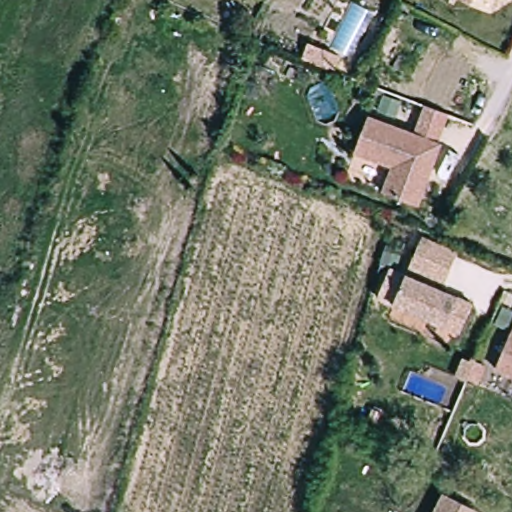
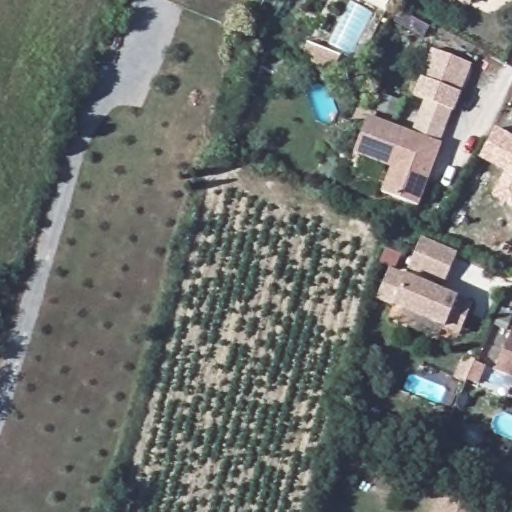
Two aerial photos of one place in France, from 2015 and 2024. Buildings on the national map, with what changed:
unchanged [(472,0),(467,9),(449,0),(472,0)]
new [(429,102),(413,96),(421,77),(432,49),(472,65),(463,95),(456,114),(455,121),(427,109),(429,102)]
unchanged [(294,72),(301,57),(337,72),(332,87),(294,72)]
unchanged [(423,207),(388,195),(396,169),(360,157),(374,117),(417,134),(427,109),(455,121),(423,207)]
new [(512,136),(512,207),(491,197),(503,173),(478,159),(495,127),(512,136)]
unchanged [(443,283),(407,269),(420,237),(457,253),(443,283)]
unchanged [(393,310),(375,302),(390,269),(407,276),(411,278),(475,304),(461,337),(397,312),(393,310)]
unchanged [(512,398),(488,386),(512,330),(512,397),(512,398)]
unchanged [(445,493),(483,512),(435,512),(445,493)]

